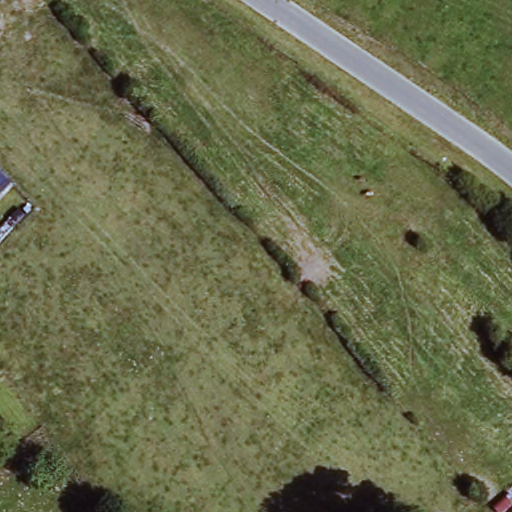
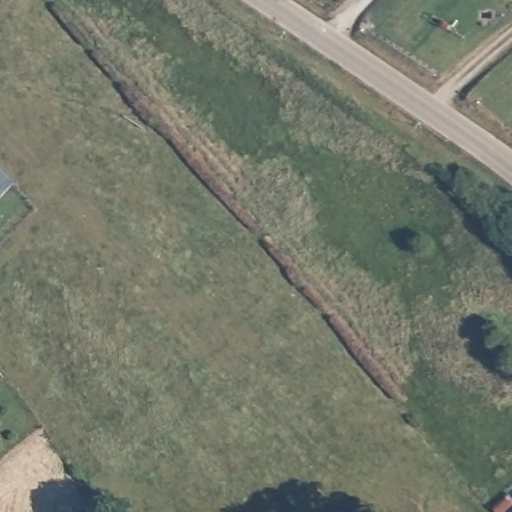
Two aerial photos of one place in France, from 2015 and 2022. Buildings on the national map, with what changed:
unchanged [(0,181),(0,164),(7,173),(0,181)]

